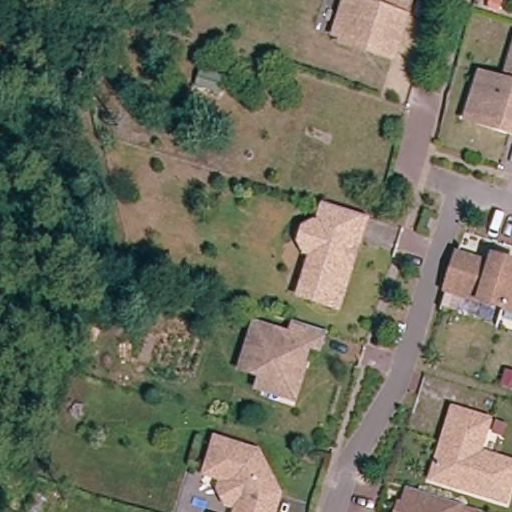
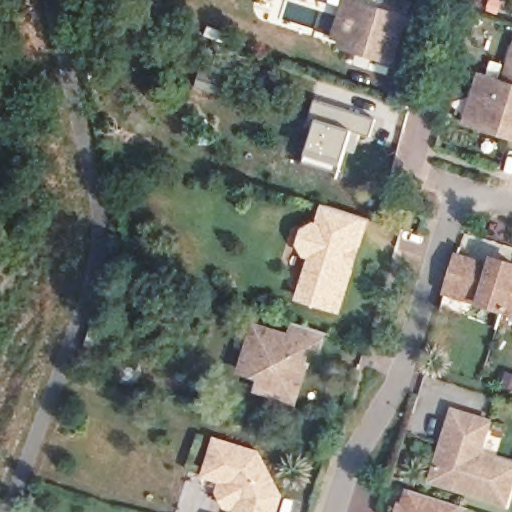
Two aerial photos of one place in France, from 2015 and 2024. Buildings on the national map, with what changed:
unchanged [(385,0),(392,0),(408,5),(390,67),(371,61),(373,54),(340,44),(331,40),(335,27),(344,0),(346,0),(353,2),(381,12),(385,0)]
unchanged [(475,128),(466,126),(476,75),(485,78),(503,82),(512,40),(512,138),(475,128)]
new [(315,115),(308,113),(315,95),(375,117),(368,137),(352,131),(337,173),(301,161),(315,115)]
unchanged [(301,299),(308,275),(312,276),(318,258),(306,254),(301,244),(305,230),(315,225),(319,227),(326,205),(355,215),(369,219),(360,248),(353,271),(340,312),(301,299)]
unchanged [(503,310),(447,292),(458,257),(490,267),(492,259),(500,262),(512,266),(512,283),(503,310)]
unchanged [(503,310),(512,283),(512,313),(503,310)]
unchanged [(292,404),(268,396),(271,386),(257,382),(260,374),(239,367),(254,321),(289,334),(293,320),(323,330),(317,349),(306,345),(300,364),(302,365),(296,386),(298,387),(292,404)]
unchanged [(452,412),(488,423),(478,456),(512,467),(512,482),(505,506),(459,492),(431,483),(435,471),(452,412)]
unchanged [(234,489),(205,479),(217,442),(265,459),(284,497),(279,512),(238,512),(241,503),(226,510),(219,496),(234,489)]
unchanged [(405,503),(410,486),(425,491),(462,503),(459,512),(397,512),(400,501),(405,503)]

